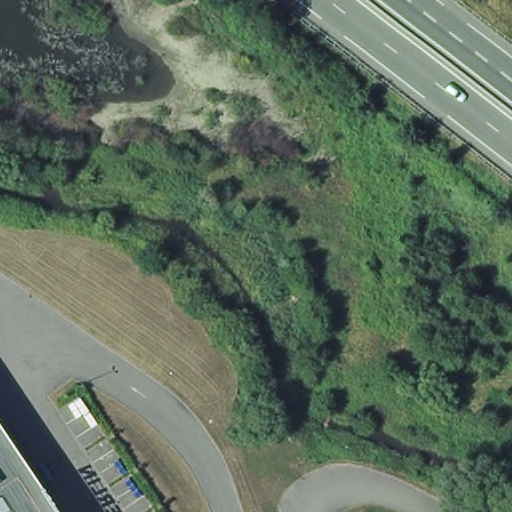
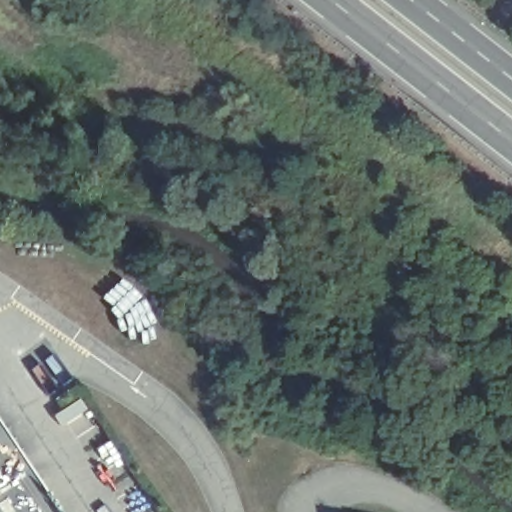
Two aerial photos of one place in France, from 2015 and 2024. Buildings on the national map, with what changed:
unchanged [(0,512),(0,434),(52,512),(0,512)]

